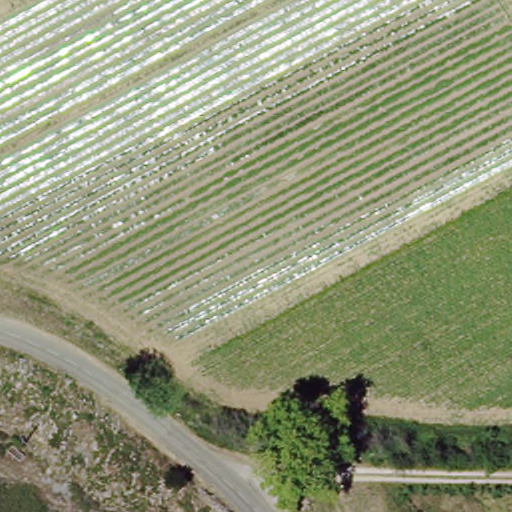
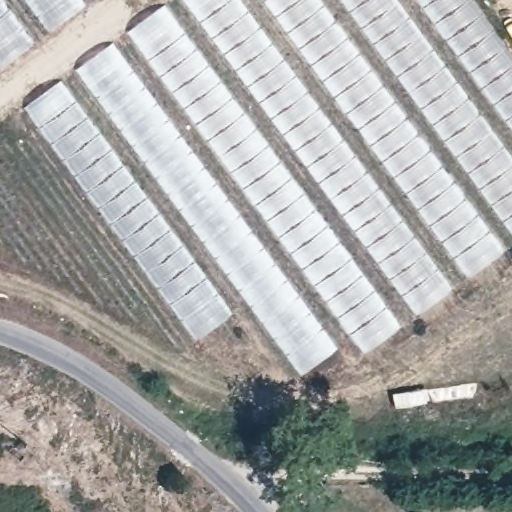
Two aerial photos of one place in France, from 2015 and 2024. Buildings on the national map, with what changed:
new [(94,0),(0,69),(0,0),(94,0)]
new [(512,248),(366,358),(353,338),(302,376),(247,302),(195,340),(23,107),(169,0),(474,0),(512,52),(512,248)]

